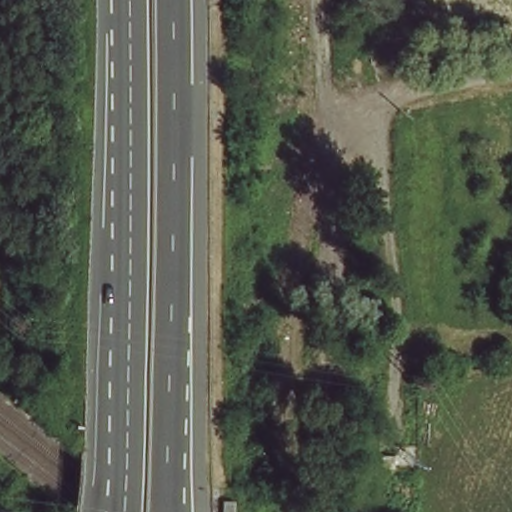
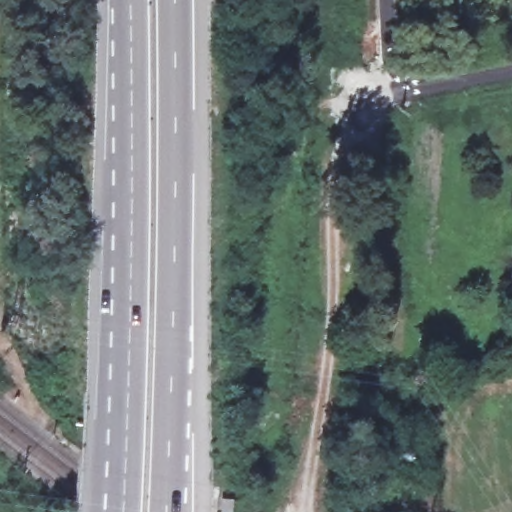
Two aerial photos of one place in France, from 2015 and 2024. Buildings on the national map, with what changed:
unchanged [(235,512),(222,512),(222,494),(235,494),(235,512)]

